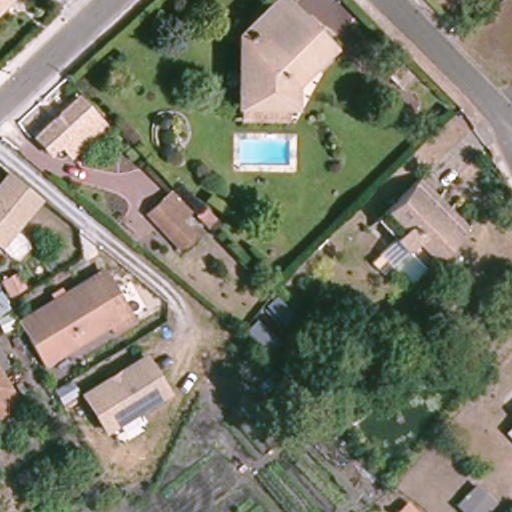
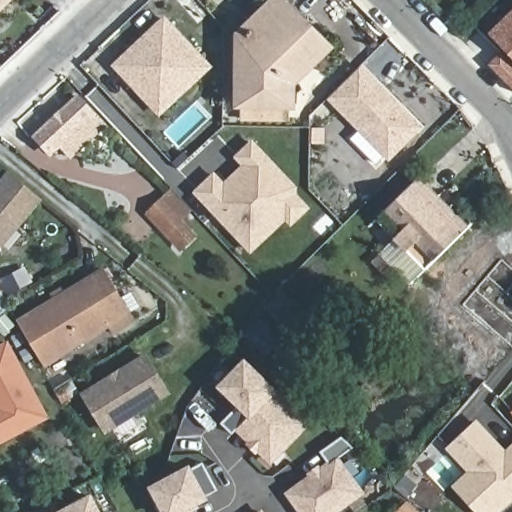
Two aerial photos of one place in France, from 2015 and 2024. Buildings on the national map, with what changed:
unchanged [(0,0),(12,0),(9,4),(0,12),(0,0)]
unchanged [(246,124),(247,111),(240,111),(240,40),(281,0),(333,52),(297,90),(297,113),(290,113),(291,124),(246,124)]
new [(133,85),(115,65),(164,19),(209,67),(179,95),(159,113),(133,85)]
new [(512,20),(512,49),(498,35),(512,20)]
new [(512,70),(512,89),(490,67),(499,57),(512,70)]
new [(415,122),(385,152),(330,96),(360,66),(415,122)]
unchanged [(78,97),(103,125),(69,155),(60,145),(49,155),(33,138),(78,97)]
new [(306,207),(291,222),(275,206),(240,239),(196,192),(214,176),(227,190),(249,169),(237,157),(252,143),(294,188),(294,195),(306,207)]
unchanged [(0,187),(9,176),(39,201),(1,246),(0,246),(0,187)]
unchanged [(419,180),(470,235),(427,272),(395,237),(380,221),(419,180)]
unchanged [(173,191),(192,212),(181,222),(193,235),(180,248),(148,212),(161,201),(173,191)]
new [(251,250),(240,239),(275,206),(286,217),(251,250)]
unchanged [(410,289),(377,254),(395,237),(427,272),(410,289)]
unchanged [(19,320),(102,271),(132,322),(113,334),(106,325),(44,363),(19,320)]
new [(0,438),(0,345),(4,343),(43,415),(0,438)]
unchanged [(81,394),(106,379),(116,373),(144,357),(165,393),(102,430),(81,394)]
new [(242,405),(224,386),(248,362),(307,420),(274,455),(255,436),(259,431),(249,421),(235,435),(224,423),(242,405)]
demolished [(0,413),(0,375),(16,404),(0,413)]
new [(477,418),(505,449),(512,442),(512,502),(501,512),(475,512),(452,486),(468,472),(445,448),(477,418)]
new [(323,455),(342,441),(354,452),(340,462),(364,496),(342,512),(302,512),(291,496),(331,467),(323,455)]
new [(182,477),(195,470),(211,500),(198,507),(199,510),(195,512),(162,512),(151,491),(181,475),(182,477)]
demolished [(473,487),(494,505),(487,512),(459,512),(455,508),(473,487)]
new [(100,512),(59,512),(91,495),(100,512)]
unchanged [(416,512),(397,512),(406,502),(416,512)]

